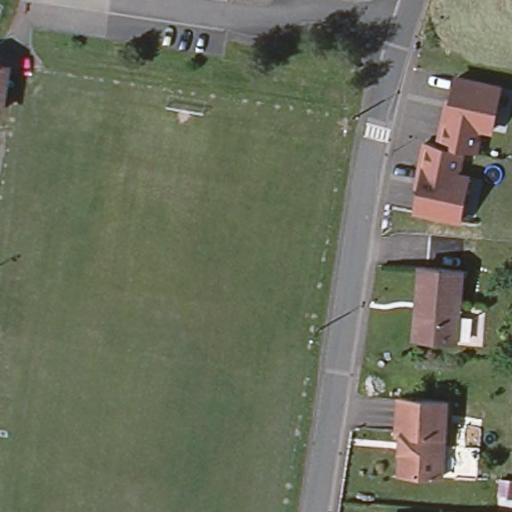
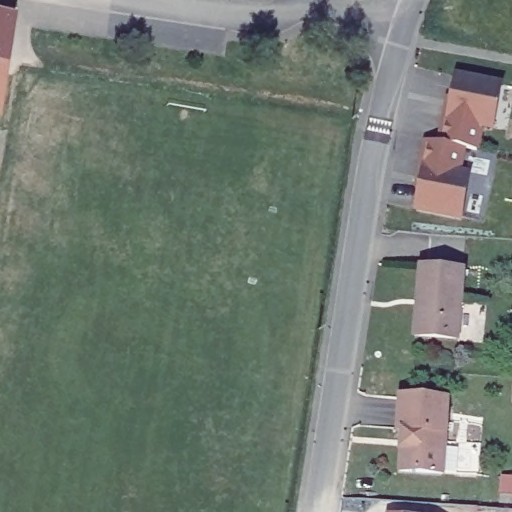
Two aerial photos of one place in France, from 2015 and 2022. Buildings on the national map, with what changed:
new [(0,106),(0,12),(15,15),(0,106)]
unchanged [(355,63),(358,69),(352,72),(348,65),(355,63)]
demolished [(0,73),(0,67),(1,67),(0,73)]
unchanged [(497,128),(484,125),(481,150),(465,146),(460,172),(473,174),(465,218),(430,210),(438,168),(435,168),(440,141),(444,142),(450,116),(453,117),(462,75),(506,84),(497,128)]
unchanged [(414,306),(415,273),(456,273),(455,344),(418,343),(418,307),(414,306)]
unchanged [(396,431),(398,398),(445,401),(442,476),(399,474),(401,431),(396,431)]

